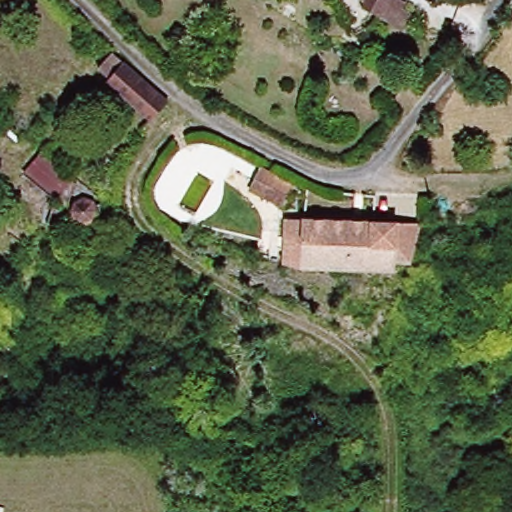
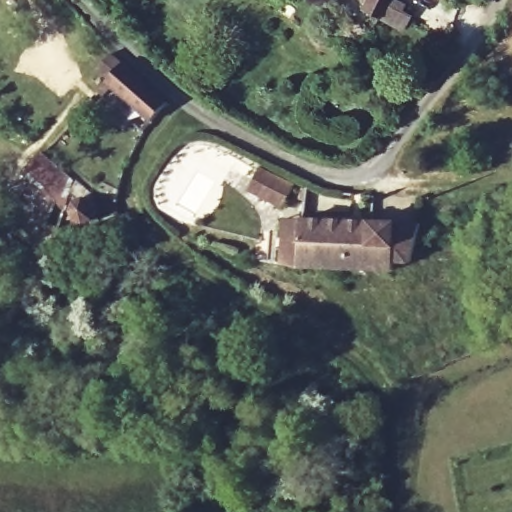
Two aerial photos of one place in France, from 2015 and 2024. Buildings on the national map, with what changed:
unchanged [(389,3),(388,10),(413,24),(404,40),(359,13),(354,0),(384,0),(389,3)]
unchanged [(155,134),(117,102),(109,110),(101,103),(113,90),(103,81),(118,66),(127,76),(171,116),(155,134)]
unchanged [(61,244),(52,234),(54,210),(21,184),(39,165),(44,160),(89,197),(95,205),(97,210),(97,219),(94,226),(89,232),(67,228),(65,243),(61,244)]
unchanged [(295,195),(283,217),(263,207),(276,185),(295,195)]
unchanged [(306,273),(287,270),(288,224),(307,224),(427,230),(419,269),(400,269),(399,276),(306,273)]

